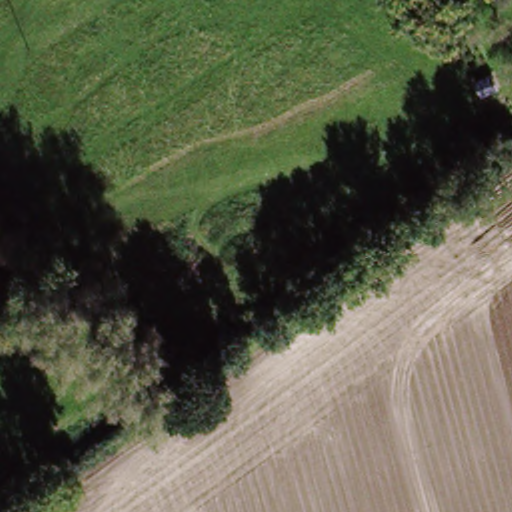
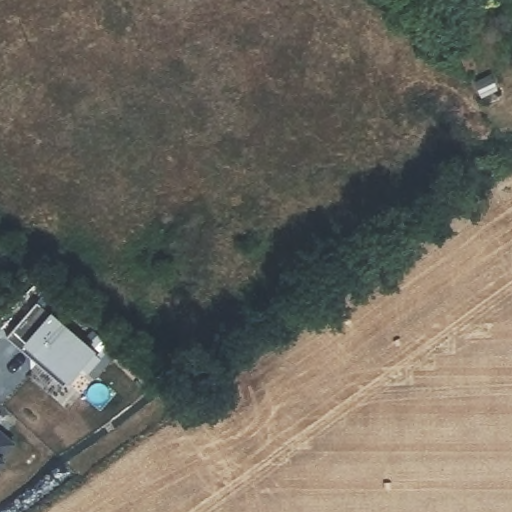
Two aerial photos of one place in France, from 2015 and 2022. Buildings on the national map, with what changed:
new [(44,299),(62,316),(108,358),(93,374),(87,368),(72,383),(69,387),(12,334),(19,327),(44,299)]
new [(6,461),(9,463),(0,473),(0,429),(19,446),(6,461)]

